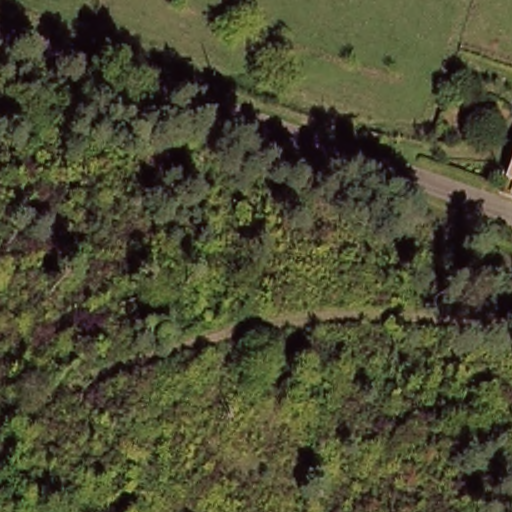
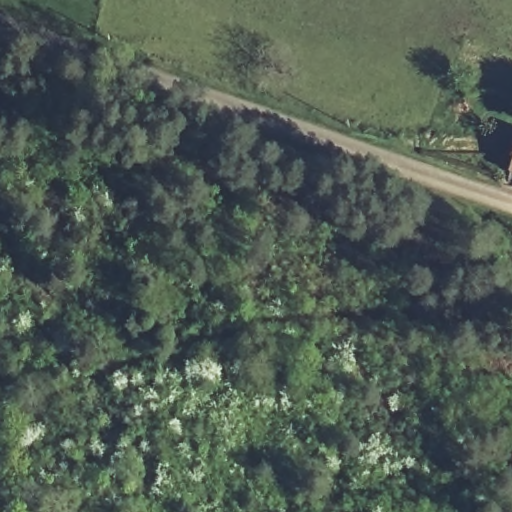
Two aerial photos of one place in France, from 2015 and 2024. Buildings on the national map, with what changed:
unchanged [(508,167),(512,156),(512,169),(508,167)]

